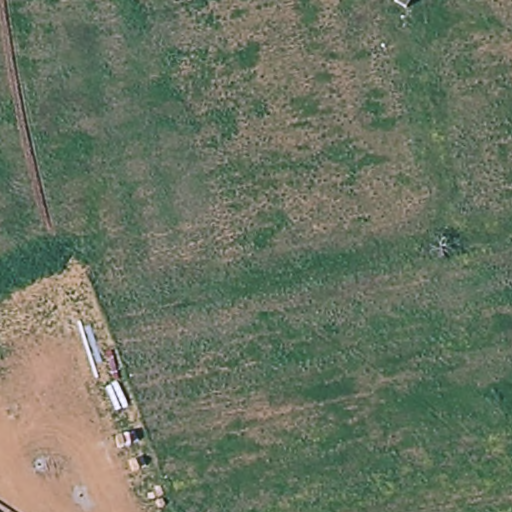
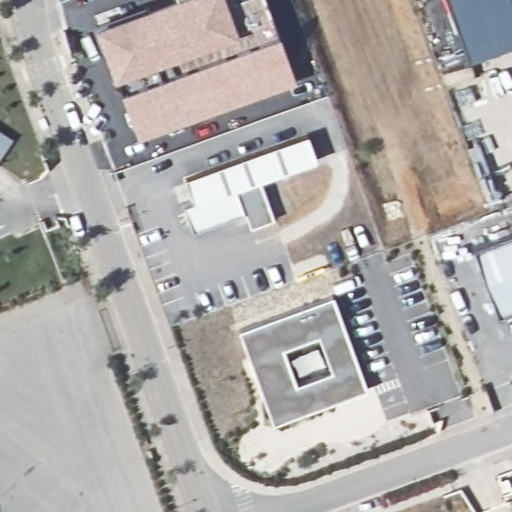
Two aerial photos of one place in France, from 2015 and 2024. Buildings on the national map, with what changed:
new [(144,8),(145,11),(175,0),(265,0),(294,79),(137,136),(96,26),(144,8)]
new [(447,0),(512,0),(512,41),(468,56),(447,0)]
new [(0,156),(0,130),(13,139),(0,156)]
new [(196,203),(186,179),(309,134),(319,160),(238,190),(246,214),(196,232),(186,206),(196,203)]
new [(357,205),(365,222),(326,240),(318,222),(357,205)]
new [(512,232),(512,309),(498,313),(474,246),(512,232)]
new [(334,297),(367,390),(272,424),(241,331),(334,297)]

